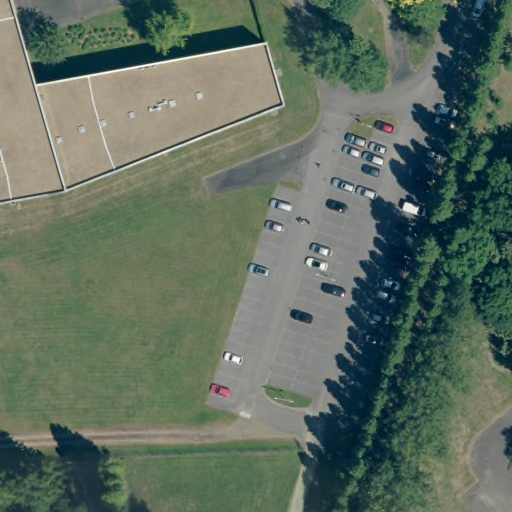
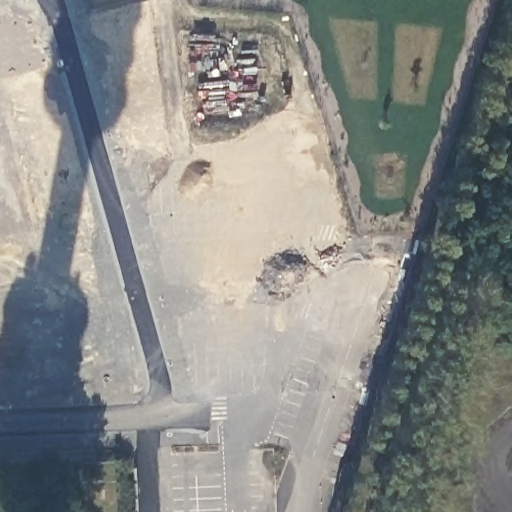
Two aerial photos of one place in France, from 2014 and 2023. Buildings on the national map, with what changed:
demolished [(264,42),(282,105),(64,190),(0,202),(0,0),(11,0),(34,83),(264,42)]

